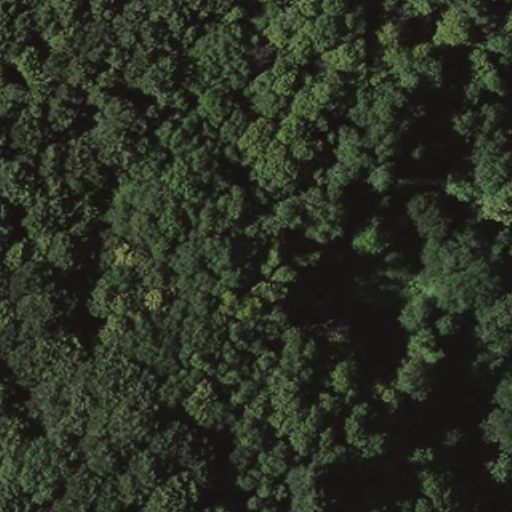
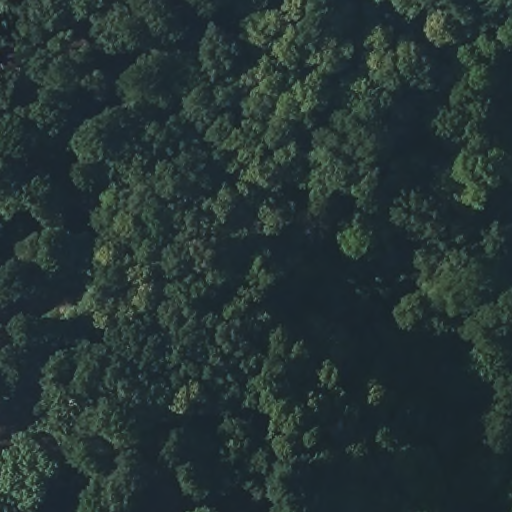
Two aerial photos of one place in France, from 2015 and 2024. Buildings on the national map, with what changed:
[]

